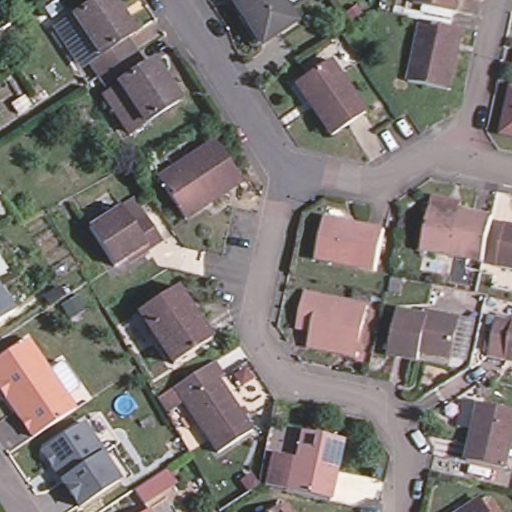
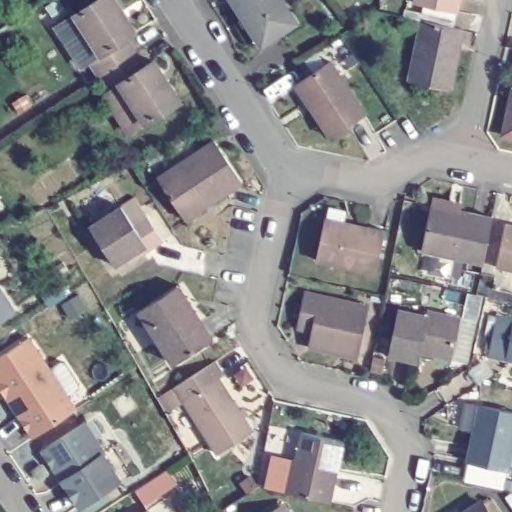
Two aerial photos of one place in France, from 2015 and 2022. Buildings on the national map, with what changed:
unchanged [(76,17),(103,0),(112,0),(133,34),(125,40),(135,55),(102,76),(91,60),(82,66),(58,29),(76,17)]
unchanged [(265,45),(235,0),(281,0),(297,23),(265,45)]
unchanged [(414,1),(414,0),(459,0),(455,13),(414,1)]
unchanged [(467,35),(452,94),(411,84),(425,24),(467,35)]
unchanged [(335,142),(300,91),(290,76),(325,54),(335,68),(369,120),(335,142)]
unchanged [(144,68),(152,63),(178,104),(145,125),(120,85),(111,91),(102,76),(135,55),(144,68)]
unchanged [(120,85),(145,125),(126,137),(101,97),(111,91),(120,85)]
unchanged [(512,99),(512,130),(505,128),(512,99)]
unchanged [(215,144),(242,186),(183,222),(157,181),(215,144)]
unchanged [(144,252),(141,249),(107,268),(84,229),(116,209),(130,200),(141,217),(157,243),(144,252)]
unchanged [(478,268),(420,253),(431,208),(489,222),(478,268)]
unchanged [(383,233),(373,275),(316,260),(326,219),(383,233)]
unchanged [(509,230),(512,231),(512,272),(500,268),(509,230)]
unchanged [(15,308),(0,318),(0,285),(15,308)]
unchanged [(210,340),(170,363),(147,324),(137,308),(148,302),(177,285),(210,340)]
unchanged [(351,358),(303,347),(307,331),(293,327),(302,293),(315,296),(363,308),(351,358)]
unchanged [(399,313),(427,319),(428,314),(459,322),(450,361),(420,353),(416,363),(388,356),(399,313)]
unchanged [(487,360),(496,320),(512,325),(512,366),(503,364),(487,360)]
unchanged [(32,334),(80,406),(72,410),(37,434),(9,392),(10,388),(3,378),(0,378),(0,355),(32,334)]
unchanged [(208,454),(177,398),(170,385),(213,361),(220,373),(213,377),(245,433),(208,454)]
unchanged [(512,417),(512,447),(505,475),(467,465),(480,408),(512,417)]
unchanged [(45,444),(83,419),(103,449),(101,451),(118,477),(77,504),(60,476),(65,474),(57,464),(50,462),(43,451),(45,444)]
unchanged [(291,465),(293,463),(295,462),(300,436),(340,446),(327,506),(309,502),(285,497),(265,493),(272,461),(291,465)]
unchanged [(488,512),(474,512),(485,505),(488,512)]
unchanged [(285,507),(288,512),(277,512),(285,507)]
unchanged [(147,508),(150,512),(142,512),(147,508)]

